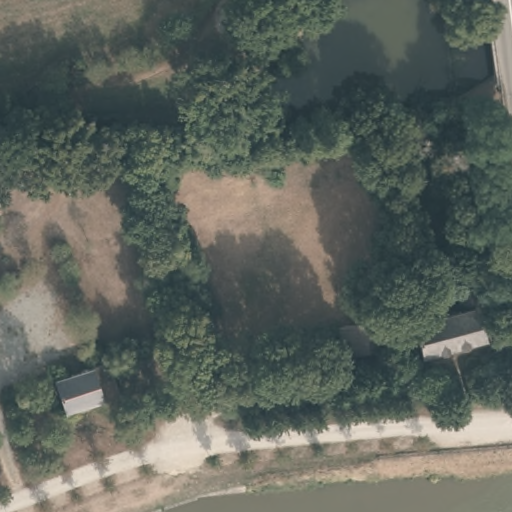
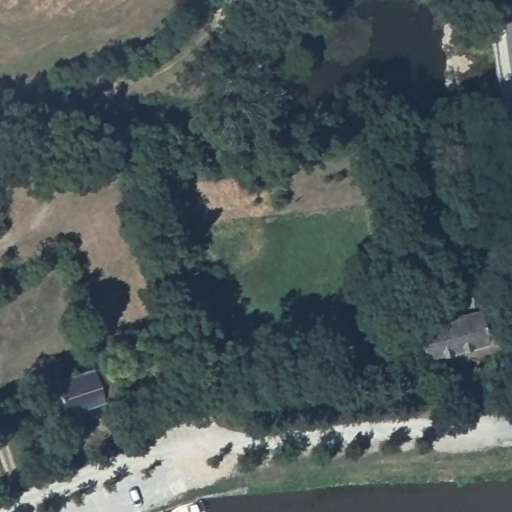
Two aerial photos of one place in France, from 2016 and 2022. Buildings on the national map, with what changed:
unchanged [(418,322),(462,310),(454,276),(478,269),(486,304),(477,306),(486,339),(425,355),(418,322)]
unchanged [(434,280),(435,289),(417,291),(416,282),(434,280)]
unchanged [(343,338),(384,330),(389,356),(348,365),(343,338)]
unchanged [(58,379),(111,360),(122,393),(69,412),(58,379)]

